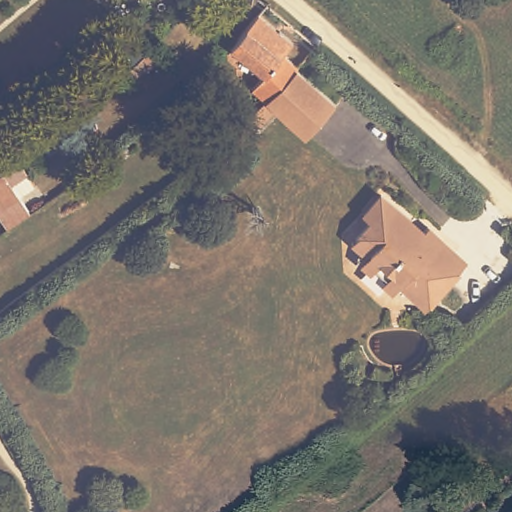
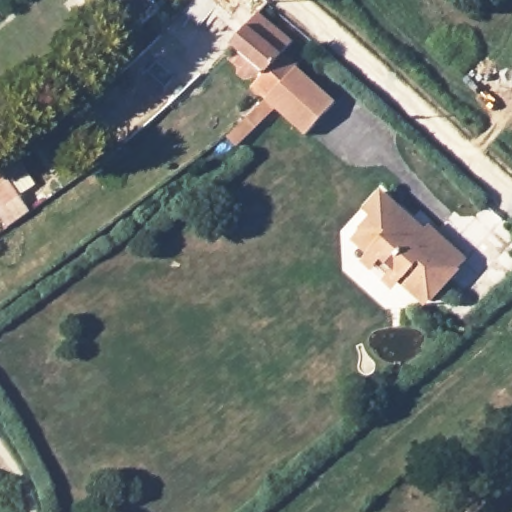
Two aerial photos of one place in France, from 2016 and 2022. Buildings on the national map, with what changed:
unchanged [(257,98),(246,88),(252,83),(260,76),(229,44),(236,37),(258,13),(290,46),(281,55),(292,67),(290,68),(325,107),(292,137),(265,107),(225,143),(217,134),(257,98)]
unchanged [(0,168),(18,156),(36,187),(22,196),(32,214),(6,232),(0,222),(0,168)]
unchanged [(378,195),(422,232),(426,227),(466,262),(430,303),(405,281),(390,282),(371,265),(370,251),(355,237),(369,220),(362,214),(378,195)]

